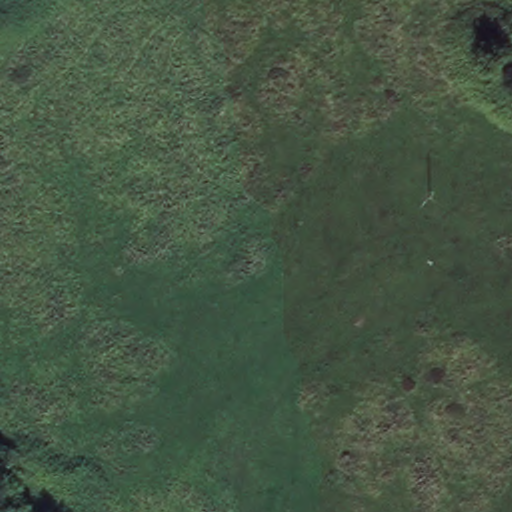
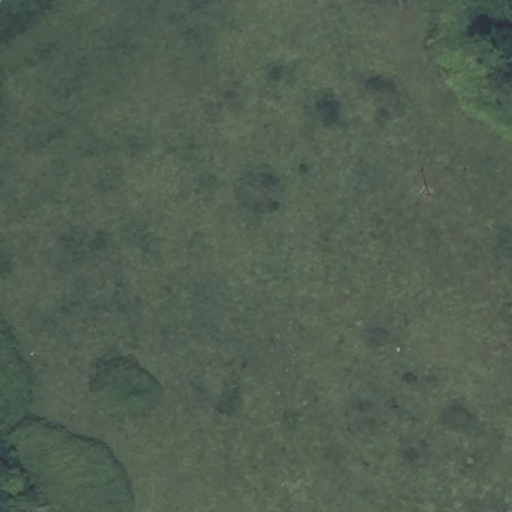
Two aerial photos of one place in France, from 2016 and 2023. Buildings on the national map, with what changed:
unchanged [(492,79),(485,51),(512,43),(512,72),(492,79)]

